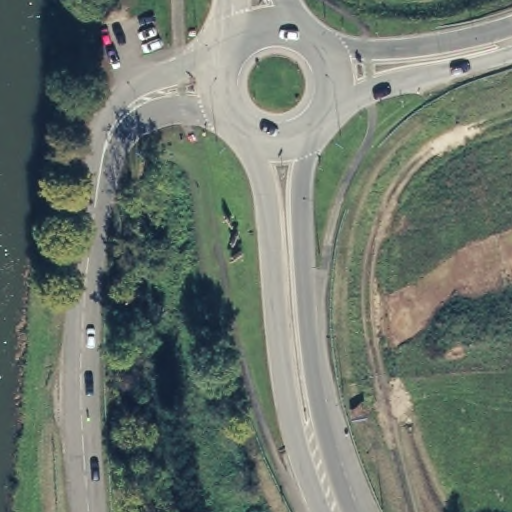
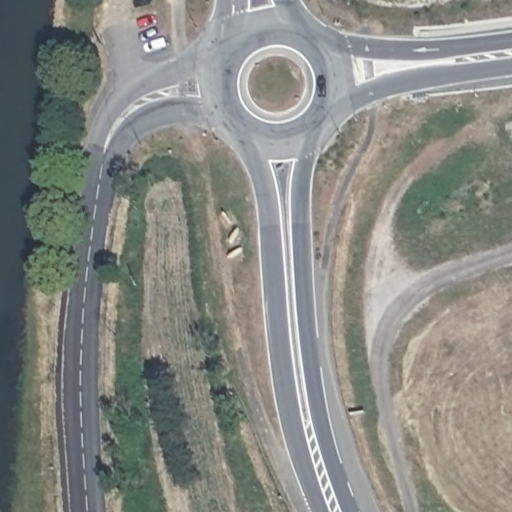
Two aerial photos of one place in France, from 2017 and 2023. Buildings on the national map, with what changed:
[]

